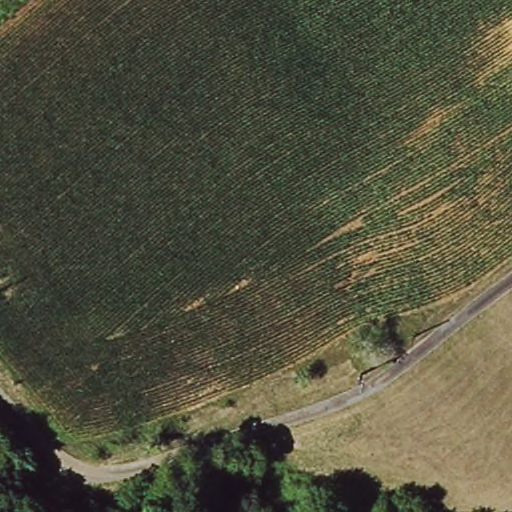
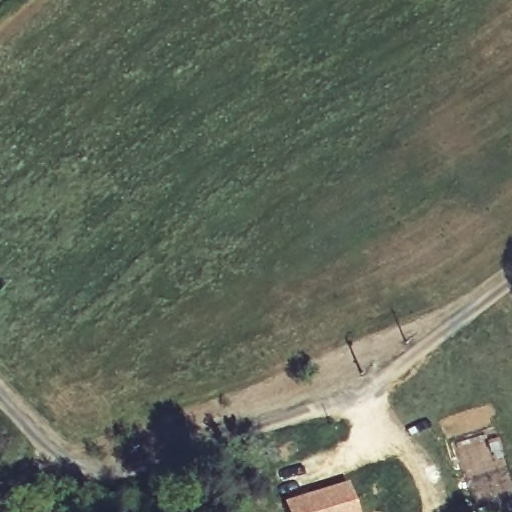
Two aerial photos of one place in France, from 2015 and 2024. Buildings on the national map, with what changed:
new [(344,485),(353,512),(283,512),(281,505),(344,485)]

